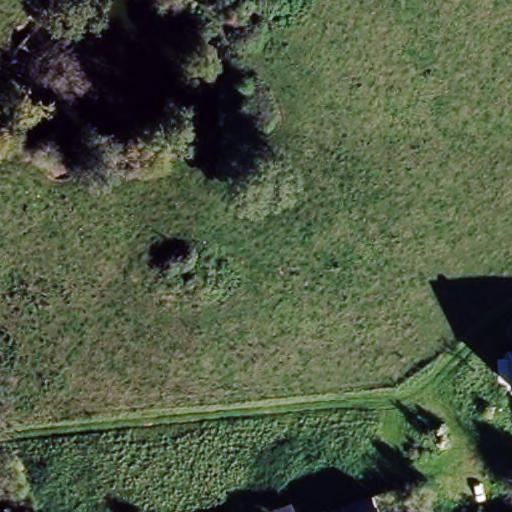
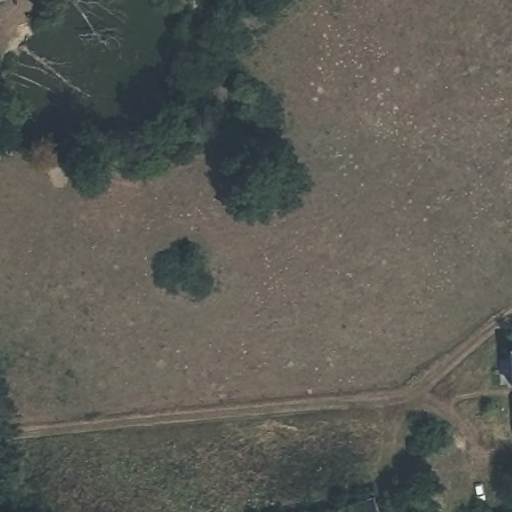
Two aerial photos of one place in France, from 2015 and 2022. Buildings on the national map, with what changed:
unchanged [(512,360),(511,355),(512,355),(512,360)]
unchanged [(402,481),(416,512),(334,512),(402,481)]
unchanged [(275,507),(277,512),(265,512),(275,507)]

